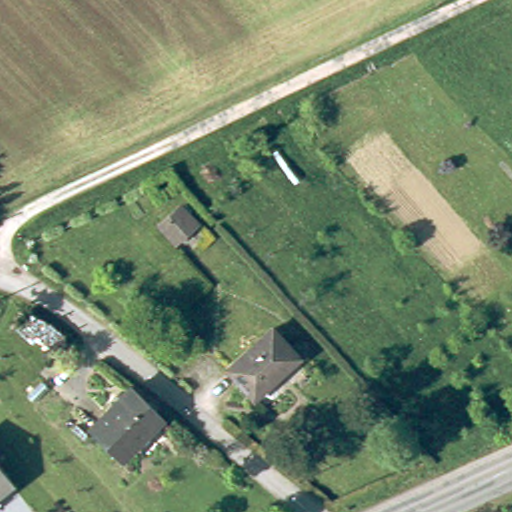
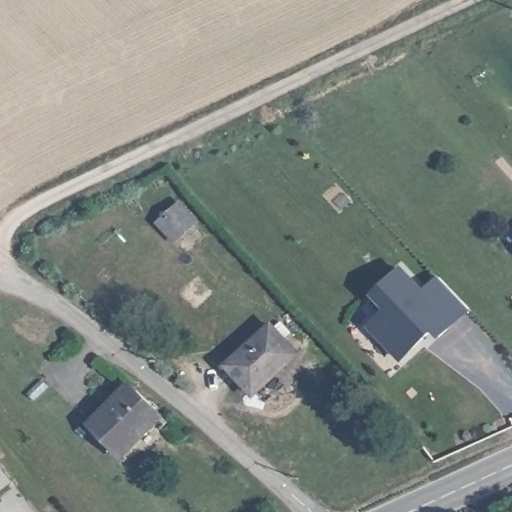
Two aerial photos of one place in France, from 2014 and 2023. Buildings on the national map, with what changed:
unchanged [(182,205),(196,220),(187,229),(172,215),(182,205)]
new [(471,310),(441,341),(433,334),(400,363),(366,328),(384,310),(371,298),(404,265),(427,288),(438,275),(471,310)]
unchanged [(236,361),(277,323),(302,350),(260,388),(236,361)]
unchanged [(163,409),(117,449),(88,420),(133,383),(163,409)]
unchanged [(0,500),(0,459),(17,480),(2,492),(5,496),(0,500)]

